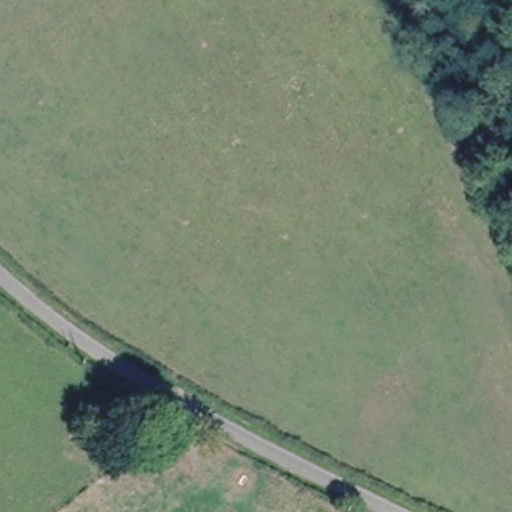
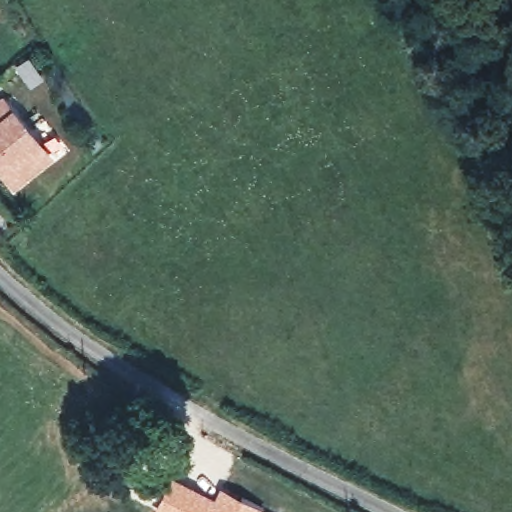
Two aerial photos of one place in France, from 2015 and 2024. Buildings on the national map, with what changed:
new [(12,106),(13,105),(55,156),(14,190),(0,172),(0,96),(3,93),(12,106)]
new [(172,474),(214,496),(220,485),(265,507),(263,511),(265,512),(154,512),(152,511),(172,474)]

